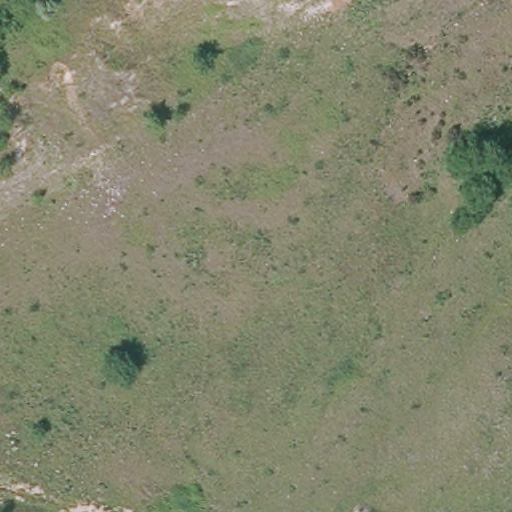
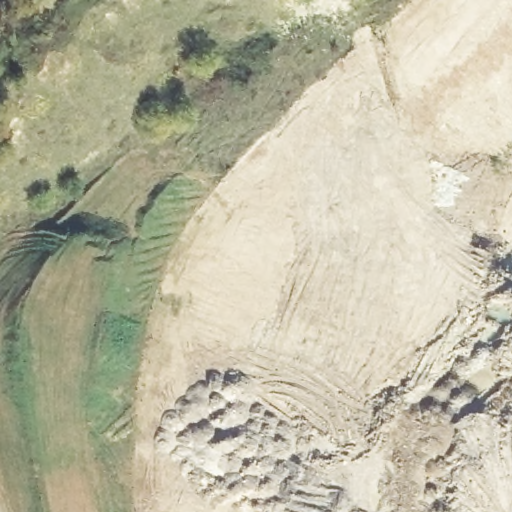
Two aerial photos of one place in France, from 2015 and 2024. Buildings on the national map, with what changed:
[]

